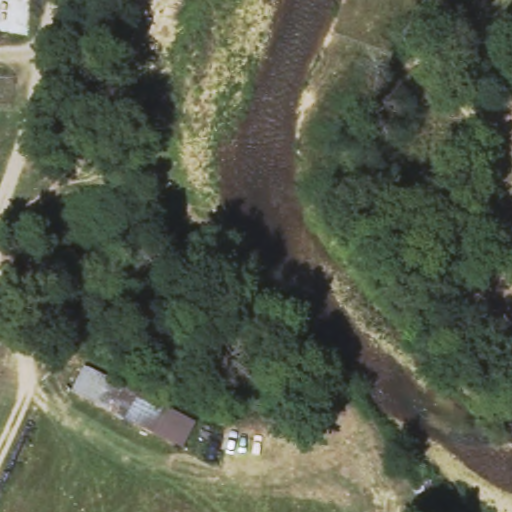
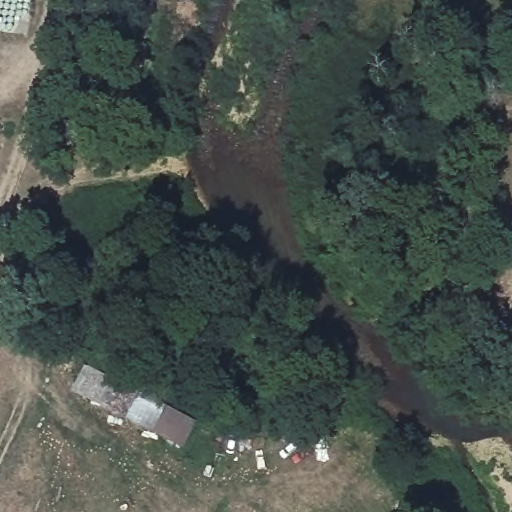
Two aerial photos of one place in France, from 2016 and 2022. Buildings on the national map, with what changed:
unchanged [(120,369),(141,380),(124,411),(76,387),(93,355),(120,369)]
unchanged [(141,380),(200,410),(184,444),(124,411),(141,380)]

